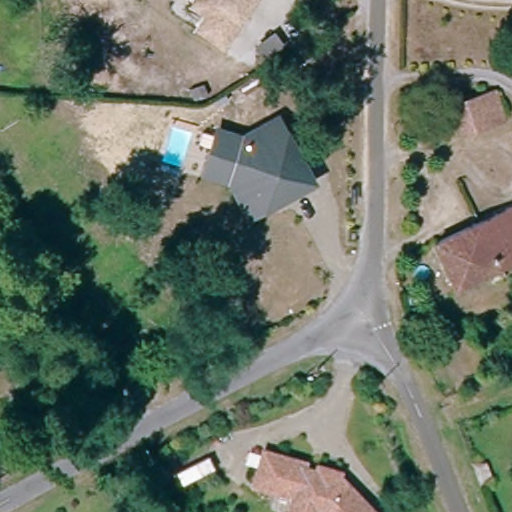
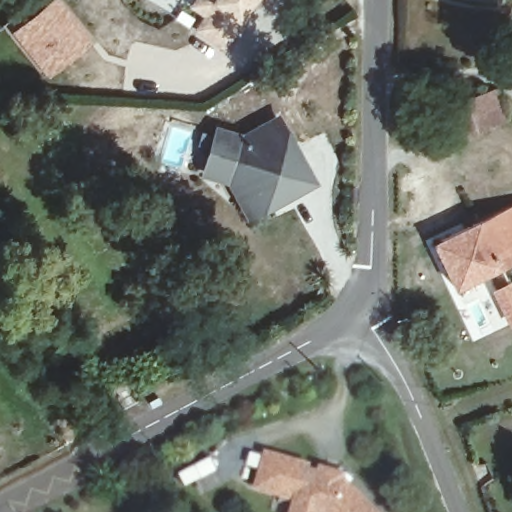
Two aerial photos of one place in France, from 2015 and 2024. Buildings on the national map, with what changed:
new [(63,0),(95,39),(47,78),(10,30),(47,0),(63,0)]
unchanged [(202,0),(257,0),(237,27),(239,29),(220,55),(197,38),(206,24),(192,14),(201,2),(202,0)]
unchanged [(458,99),(455,88),(478,81),(481,92),(501,86),(510,116),(490,122),(466,129),(458,99)]
unchanged [(216,126),(241,134),(277,116),(305,173),(308,179),(305,181),(245,210),(232,184),(227,173),(203,165),(206,156),(216,126)]
unchanged [(512,201),(512,260),(457,285),(434,237),(512,201)]
unchanged [(291,507),(293,499),(254,489),(262,454),(303,465),(302,470),(317,474),(323,469),(333,473),(337,479),(341,481),(373,512),(290,512),(291,507)]

